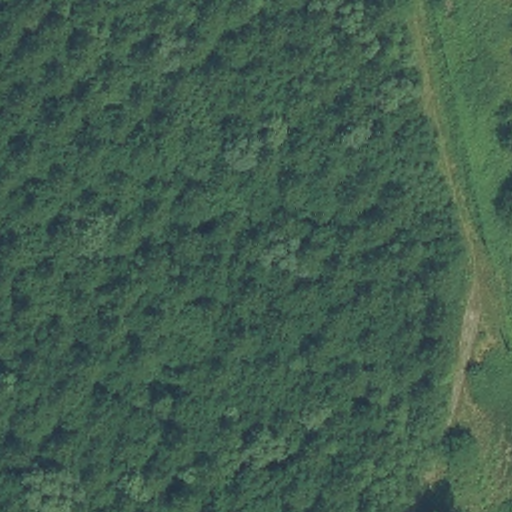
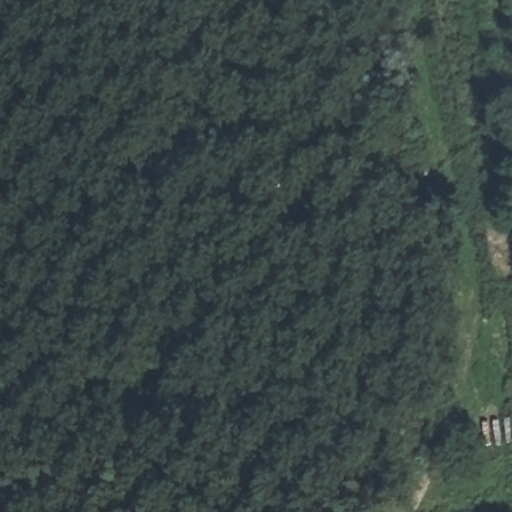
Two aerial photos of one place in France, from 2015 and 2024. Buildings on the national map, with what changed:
[]

